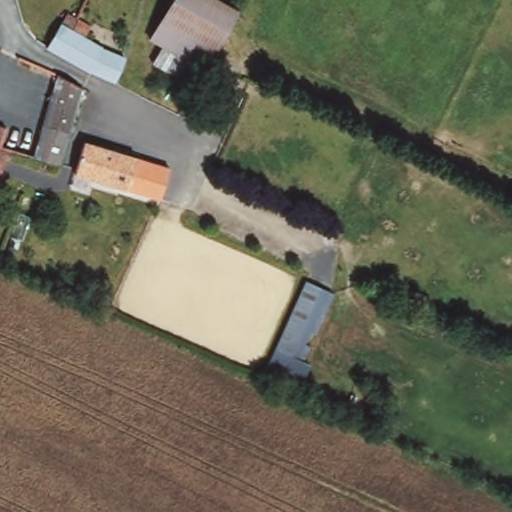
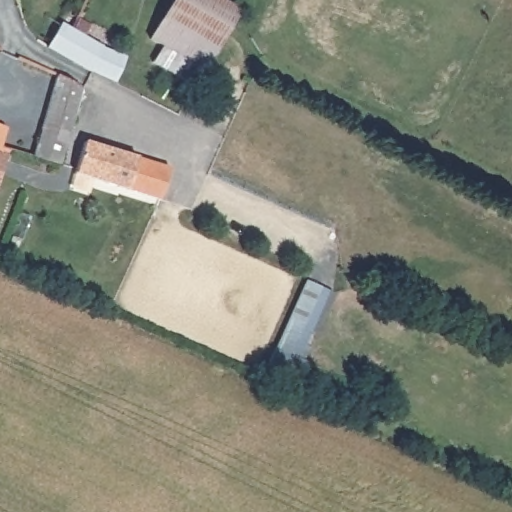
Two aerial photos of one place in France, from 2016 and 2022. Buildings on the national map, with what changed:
unchanged [(215,50),(161,19),(172,0),(219,0),(237,10),(216,48),(215,50)]
unchanged [(115,82),(91,71),(90,72),(47,47),(67,13),(78,19),(90,26),(85,37),(102,47),(102,48),(102,49),(125,59),(115,82)]
unchanged [(194,87),(152,62),(162,46),(150,39),(161,19),(215,50),(194,87)]
unchanged [(81,87),(82,91),(60,165),(34,158),(57,75),(81,87)]
unchanged [(0,142),(0,125),(6,128),(0,142)]
unchanged [(148,162),(149,162),(170,168),(169,171),(160,200),(130,191),(75,174),(84,142),(148,162)]
unchanged [(0,180),(0,153),(7,155),(0,180)]
unchanged [(276,350),(307,281),(333,293),(303,362),(276,350)]
unchanged [(303,362),(310,365),(297,392),(263,377),(276,350),(303,362)]

